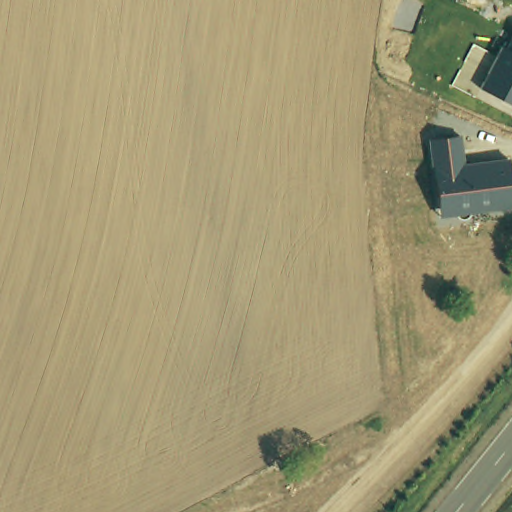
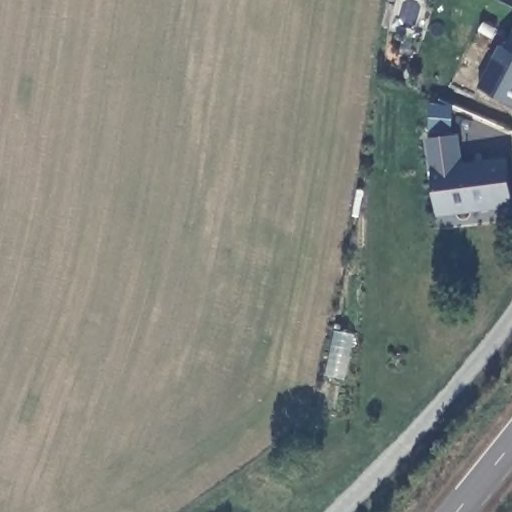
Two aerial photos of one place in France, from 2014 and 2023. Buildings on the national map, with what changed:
unchanged [(479,89),(500,47),(505,49),(512,36),(512,106),(479,89)]
unchanged [(459,132),(463,164),(508,157),(512,184),(512,207),(438,217),(426,139),(459,132)]

